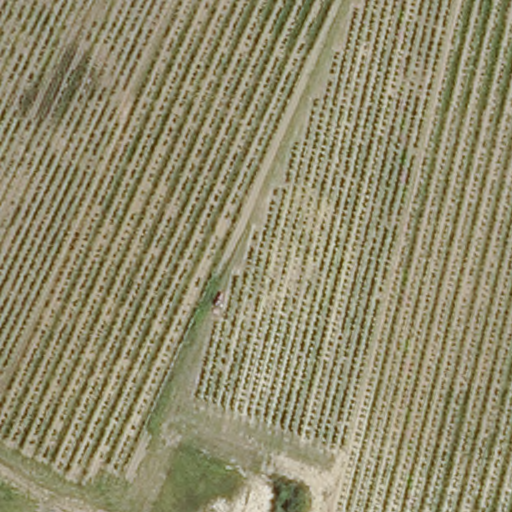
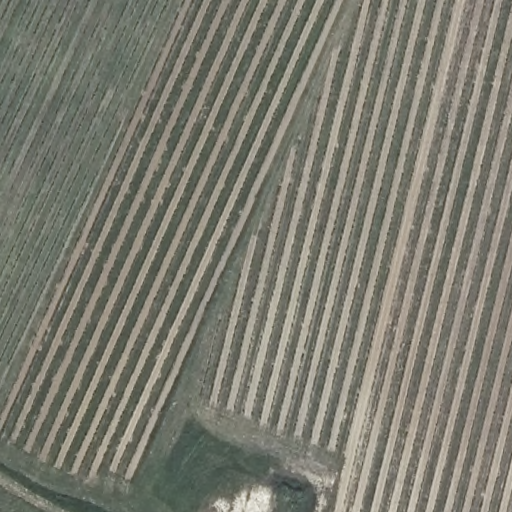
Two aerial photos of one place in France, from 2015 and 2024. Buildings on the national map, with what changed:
[]

